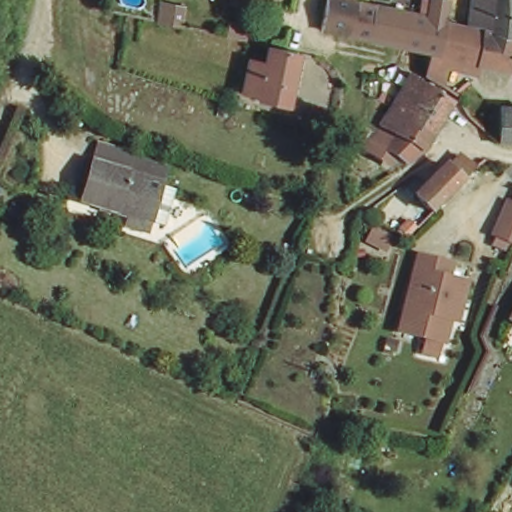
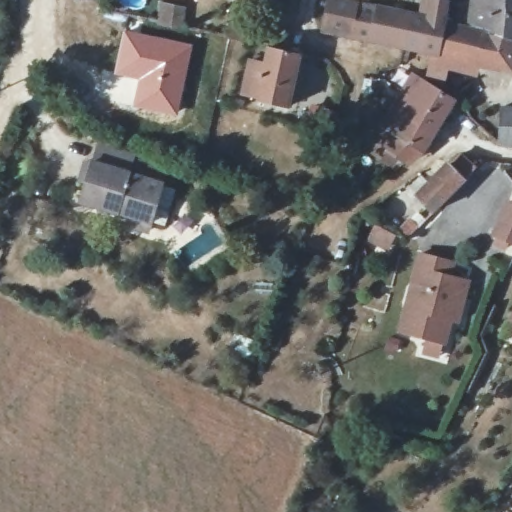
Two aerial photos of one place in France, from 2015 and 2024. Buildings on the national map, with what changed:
unchanged [(186,1),(183,21),(163,16),(165,0),(184,0),(186,1)]
unchanged [(324,25),(330,0),(354,0),(378,5),(370,36),(324,25)]
unchanged [(486,21),(467,17),(470,0),(499,0),(498,5),(512,7),(512,30),(485,25),(486,21)]
unchanged [(499,0),(512,0),(512,7),(498,5),(499,0)]
unchanged [(458,93),(429,75),(435,49),(427,47),(406,43),(370,36),(378,5),(414,11),(431,15),(434,15),(448,18),(485,25),(512,30),(512,57),(511,62),(478,57),(475,66),(473,73),(470,79),(458,93)]
unchanged [(227,31),(232,15),(251,19),(246,36),(227,31)]
new [(123,29),(193,44),(177,118),(131,107),(137,82),(113,76),(123,29)]
unchanged [(291,109),(261,103),(263,96),(247,93),(253,62),(268,64),(272,52),(290,57),(301,59),(291,109)]
unchanged [(410,87),(419,74),(453,101),(444,114),(435,129),(420,151),(417,153),(408,159),(390,147),(377,160),(358,153),(360,149),(392,109),(405,92),(410,87)]
unchanged [(507,105),(512,105),(512,140),(502,140),(507,105)]
unchanged [(81,204),(86,187),(77,184),(84,163),(92,166),(98,146),(133,156),(131,160),(166,171),(162,185),(161,188),(177,192),(165,229),(151,224),(150,225),(147,234),(127,227),(130,218),(81,204)]
unchanged [(430,216),(412,197),(445,164),(450,168),(462,157),(466,160),(475,154),(485,163),(477,170),(465,182),(442,205),(430,216)]
unchanged [(510,194),(512,195),(512,234),(495,227),(510,194)]
unchanged [(443,258),(441,270),(470,276),(464,296),(450,293),(444,307),(451,317),(444,341),(400,329),(419,254),(443,258)]

